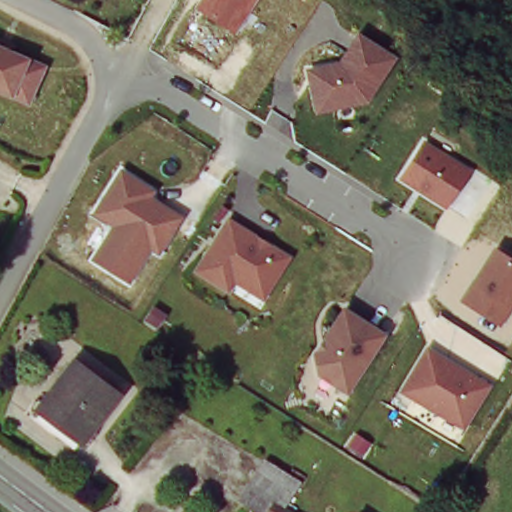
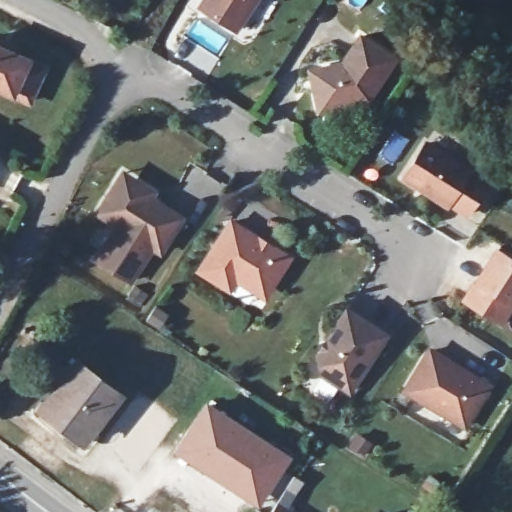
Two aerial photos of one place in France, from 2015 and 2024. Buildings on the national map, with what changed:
unchanged [(235,34),(197,8),(202,0),(257,0),(235,34)]
unchanged [(340,61),(359,31),(398,54),(370,102),(317,113),(305,68),(340,61)]
unchanged [(0,89),(0,48),(2,49),(4,44),(16,49),(13,54),(48,69),(33,104),(0,89)]
unchanged [(473,170),(449,208),(402,179),(428,141),(473,170)]
unchanged [(159,191),(156,197),(186,218),(163,255),(156,252),(133,287),(96,261),(115,227),(96,213),(124,169),(159,191)]
unchanged [(293,257),(266,301),(239,283),(231,293),(199,272),(232,219),(293,257)]
unchanged [(503,325),(465,301),(478,278),(497,247),(512,257),(512,309),(503,325)]
unchanged [(389,337),(352,394),(320,373),(316,353),(349,309),(389,337)]
unchanged [(493,386),(467,428),(404,392),(430,346),(493,386)]
unchanged [(121,395),(85,444),(41,411),(75,362),(121,395)]
new [(288,450),(260,500),(176,446),(205,397),(288,450)]
demolished [(257,512),(245,503),(269,457),(316,492),(303,512),(257,512)]

